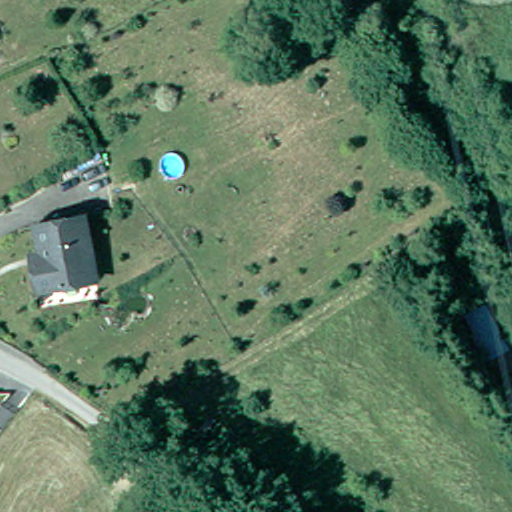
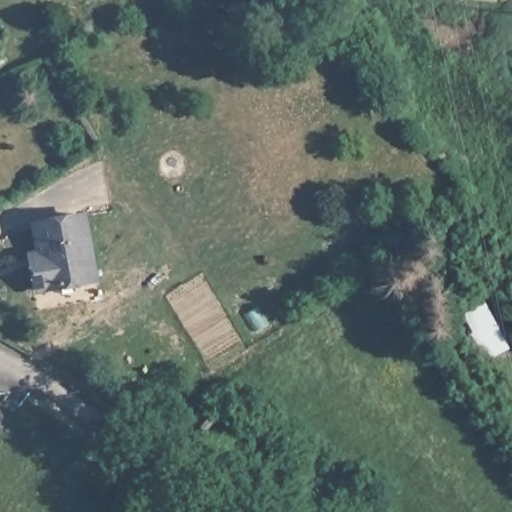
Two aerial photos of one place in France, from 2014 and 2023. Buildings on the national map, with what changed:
unchanged [(41,259),(36,229),(83,218),(96,282),(39,295),(33,270),(32,261),(41,259)]

